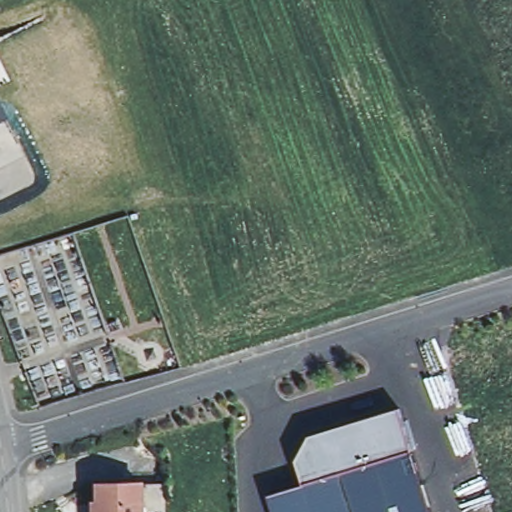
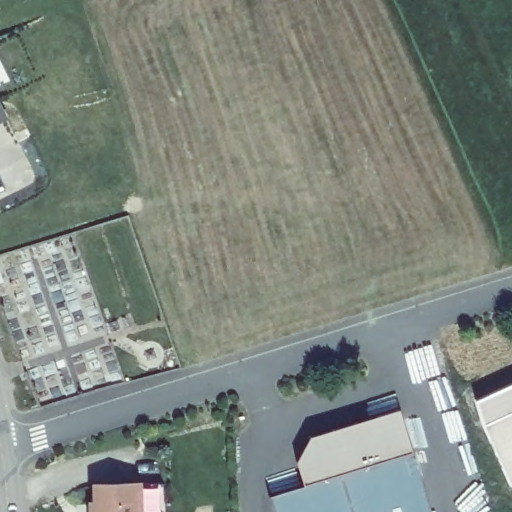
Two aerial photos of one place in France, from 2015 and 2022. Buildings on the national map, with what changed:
unchanged [(0,122),(0,105),(6,119),(0,122)]
new [(511,484),(474,400),(512,384),(512,484),(511,484)]
unchanged [(270,497),(301,486),(294,461),(311,435),(398,407),(413,453),(430,512),(275,512),(270,497)]
unchanged [(138,484),(139,512),(95,512),(93,485),(138,484)]

